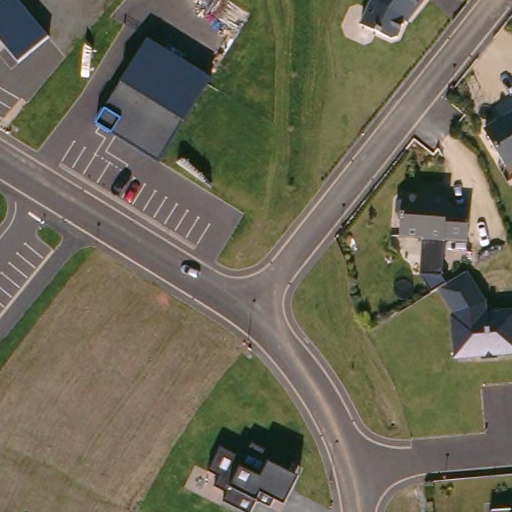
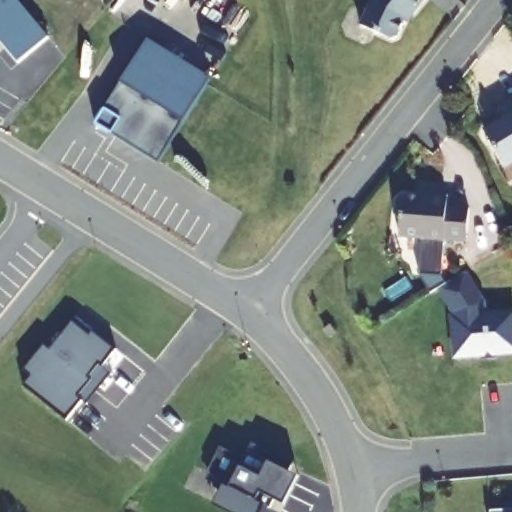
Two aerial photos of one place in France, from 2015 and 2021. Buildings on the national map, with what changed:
unchanged [(19,63),(0,41),(0,0),(17,0),(48,38),(19,63)]
unchanged [(414,0),(407,9),(401,28),(398,35),(393,42),(362,18),(371,0),(421,0),(418,4),(414,0)]
unchanged [(147,39),(210,76),(158,162),(96,125),(147,39)]
unchanged [(512,111),(512,158),(504,162),(485,126),(512,111)]
unchanged [(445,234),(445,238),(422,237),(423,233),(400,232),(401,213),(397,208),(398,195),(403,191),(427,193),(427,189),(448,191),(447,203),(470,204),(467,236),(445,234)]
unchanged [(466,272),(485,303),(486,314),(512,311),(512,351),(457,356),(453,317),(456,316),(455,312),(440,288),(446,284),(466,272)]
new [(84,399),(69,420),(26,388),(33,379),(25,374),(46,346),(51,350),(75,318),(116,347),(103,364),(112,371),(100,387),(88,402),(84,399)]
unchanged [(224,504),(226,494),(213,491),(215,481),(203,477),(210,450),(236,457),(241,439),(285,451),(272,500),(258,497),(254,512),(224,504)]
unchanged [(486,506),(475,507),(474,488),(512,485),(512,512),(486,512),(486,506)]

